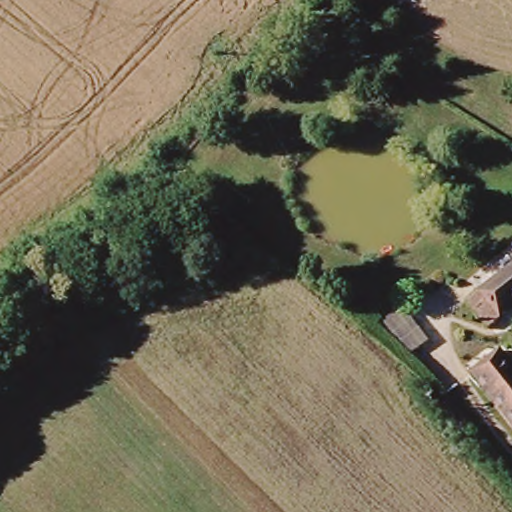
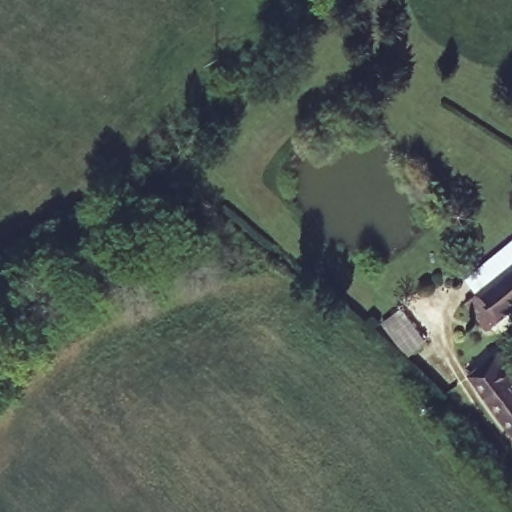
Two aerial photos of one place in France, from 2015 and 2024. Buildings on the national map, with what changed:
unchanged [(469,304),(512,269),(512,310),(489,328),(469,304)]
unchanged [(501,355),(512,369),(512,430),(471,378),(501,355)]

